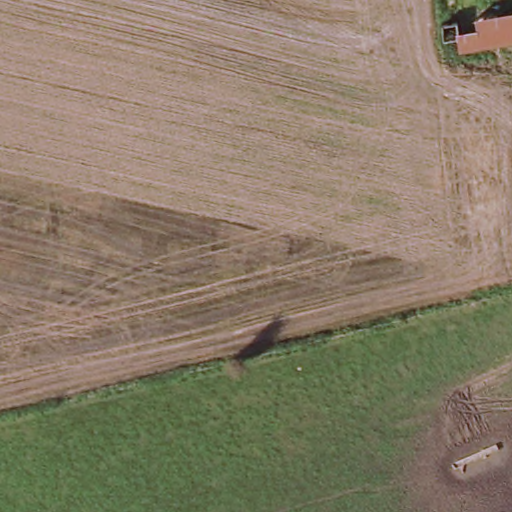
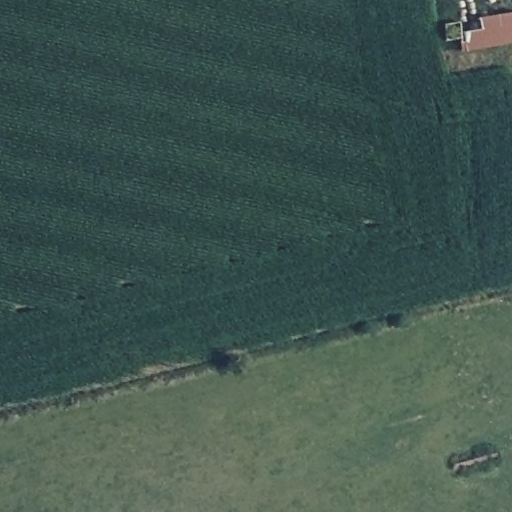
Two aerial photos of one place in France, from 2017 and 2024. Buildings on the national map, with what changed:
unchanged [(446,47),(444,26),(512,16),(512,48),(464,56),(461,45),(446,47)]

